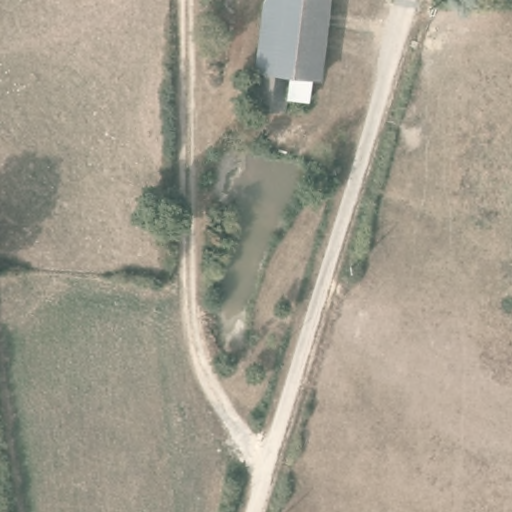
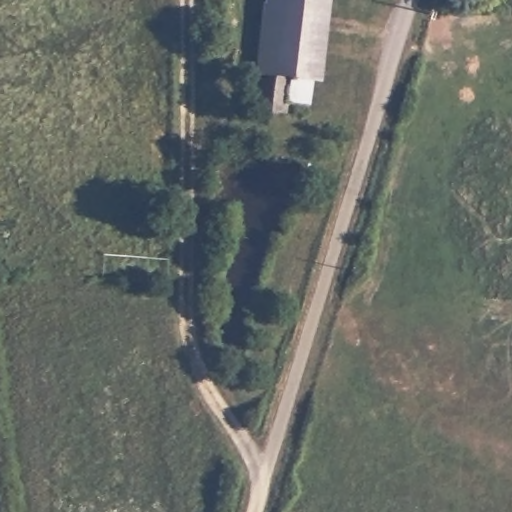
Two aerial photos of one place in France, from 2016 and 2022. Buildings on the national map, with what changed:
unchanged [(315,76),(312,101),(287,97),(285,111),(255,107),(261,67),(255,67),(262,0),(330,0),(328,27),(325,76),(315,76)]

